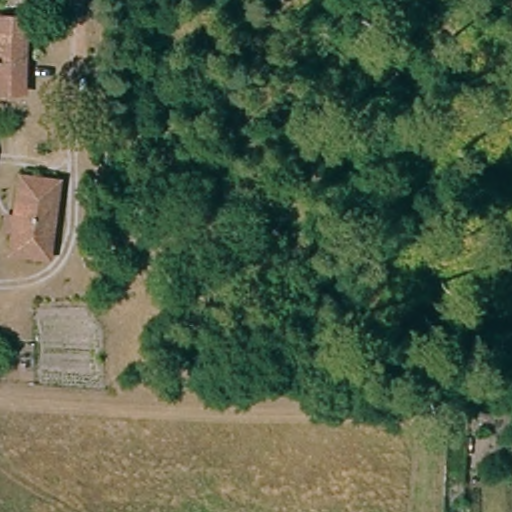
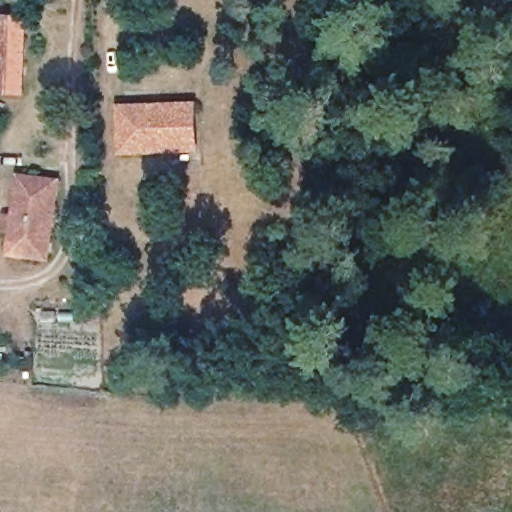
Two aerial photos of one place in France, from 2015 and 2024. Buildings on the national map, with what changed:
unchanged [(27,24),(25,93),(0,93),(0,24),(27,24)]
new [(119,156),(118,103),(199,100),(201,153),(119,156)]
unchanged [(20,183),(60,186),(53,257),(10,253),(20,183)]

